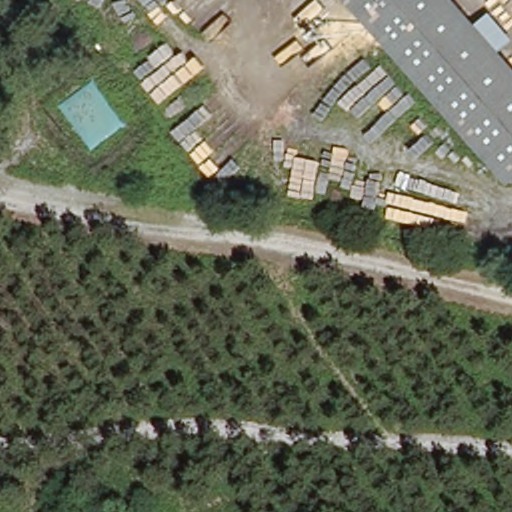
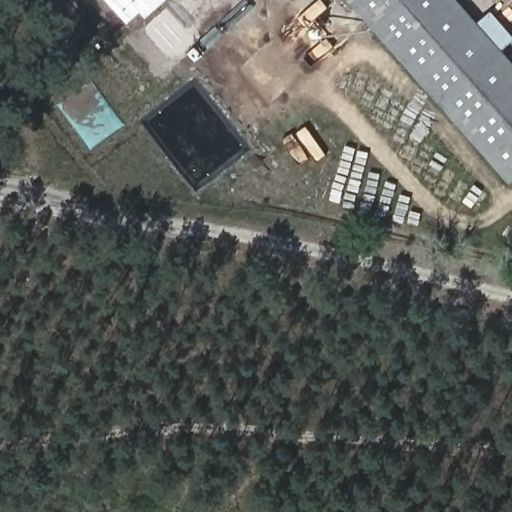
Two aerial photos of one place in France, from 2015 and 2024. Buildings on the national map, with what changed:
new [(140,12),(125,24),(106,0),(167,0),(145,19),(140,12)]
unchanged [(512,183),(349,0),(459,0),(512,59),(512,182),(512,183)]

